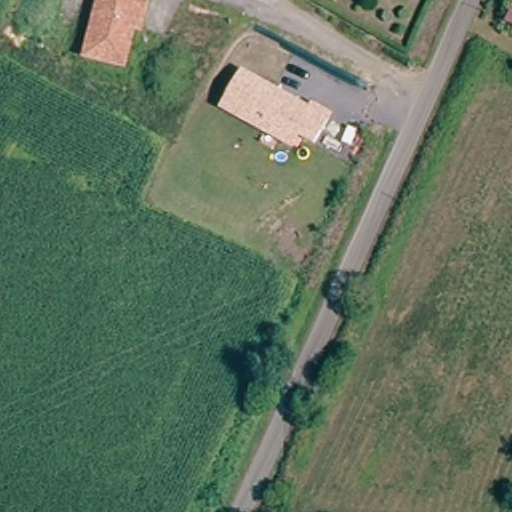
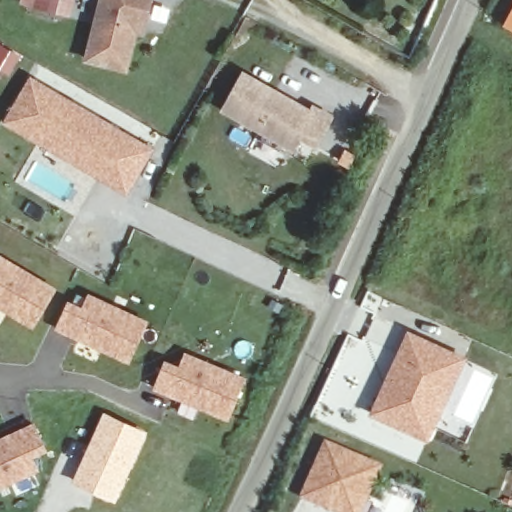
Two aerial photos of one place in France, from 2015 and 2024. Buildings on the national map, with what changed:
unchanged [(82,62),(97,0),(151,0),(144,38),(136,36),(128,73),(82,62)]
new [(512,10),(512,28),(504,24),(512,10)]
unchanged [(242,71),(310,109),(313,103),(334,115),(316,150),(302,141),(296,154),(219,113),(242,71)]
new [(3,123),(30,76),(155,149),(128,195),(3,123)]
new [(33,324),(0,306),(0,265),(3,261),(52,289),(33,324)]
new [(57,329),(69,305),(82,311),(89,296),(146,321),(127,359),(57,329)]
new [(407,328),(468,357),(427,444),(367,416),(407,328)]
new [(227,417),(155,389),(165,364),(178,370),(185,354),(243,378),(227,417)]
new [(103,411),(148,431),(115,503),(70,482),(103,411)]
new [(32,424),(45,451),(28,459),(35,471),(0,486),(0,439),(32,424)]
new [(383,464),(363,512),(327,512),(297,499),(323,438),(383,464)]

